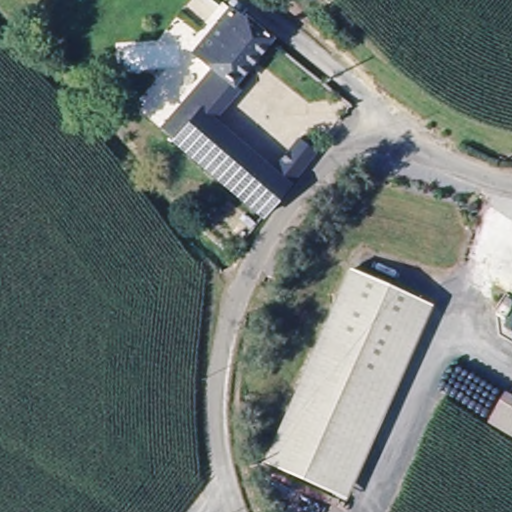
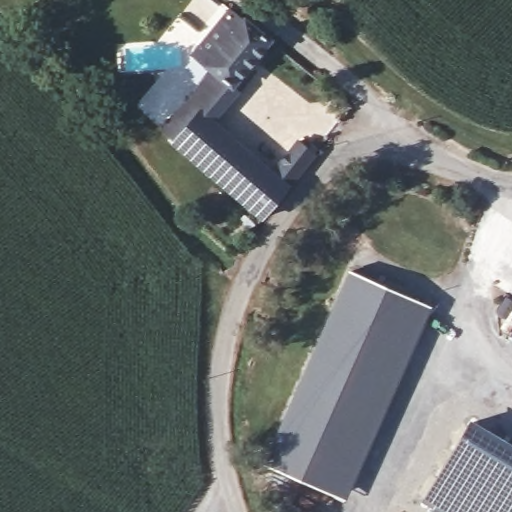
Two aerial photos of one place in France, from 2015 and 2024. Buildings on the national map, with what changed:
unchanged [(272,38),(238,81),(227,71),(215,61),(200,48),(235,13),(272,38)]
unchanged [(227,71),(238,81),(241,84),(216,110),(191,87),(215,61),(227,71)]
unchanged [(162,119),(191,87),(216,110),(273,165),(301,136),(323,151),(266,216),(162,119)]
unchanged [(343,494),(274,462),(362,271),(431,303),(343,494)]
unchanged [(511,391),(512,392),(512,436),(491,423),(511,391)]
new [(471,417),(512,441),(512,512),(438,512),(420,501),(471,417)]

